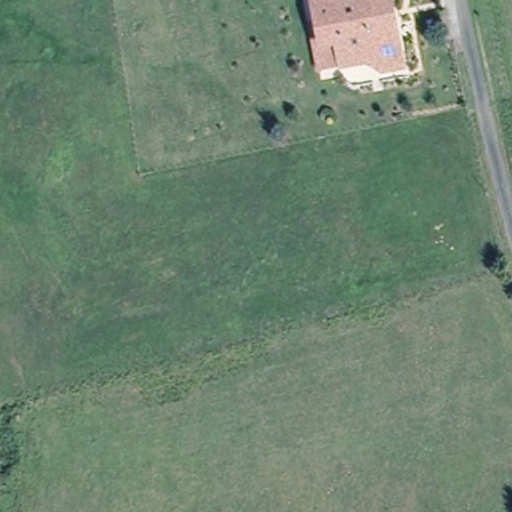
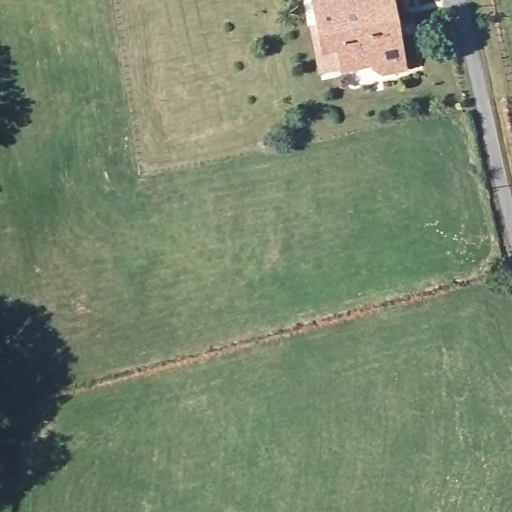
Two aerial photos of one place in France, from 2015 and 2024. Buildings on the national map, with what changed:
unchanged [(326,22),(322,0),(396,0),(398,10),(400,20),(409,67),(389,71),(382,66),(380,60),(350,65),(328,69),(320,24),(326,22)]

